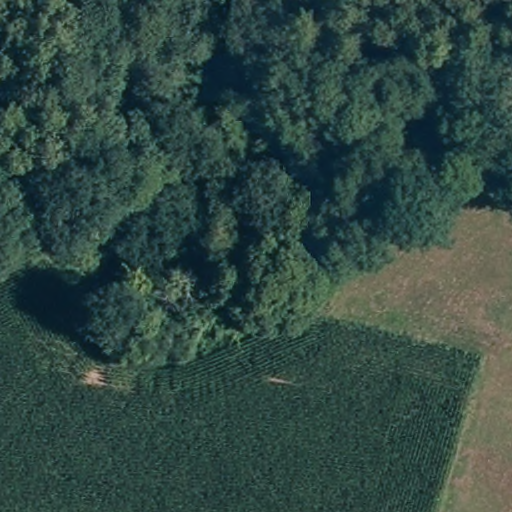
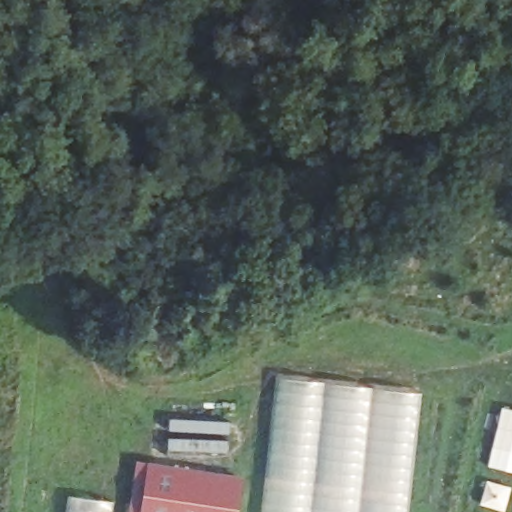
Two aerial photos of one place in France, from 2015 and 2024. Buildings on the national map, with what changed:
new [(420,392),(407,512),(260,512),(275,375),(420,392)]
new [(245,476),(239,512),(127,512),(135,458),(245,476)]
new [(112,501),(111,512),(64,512),(66,495),(112,501)]

